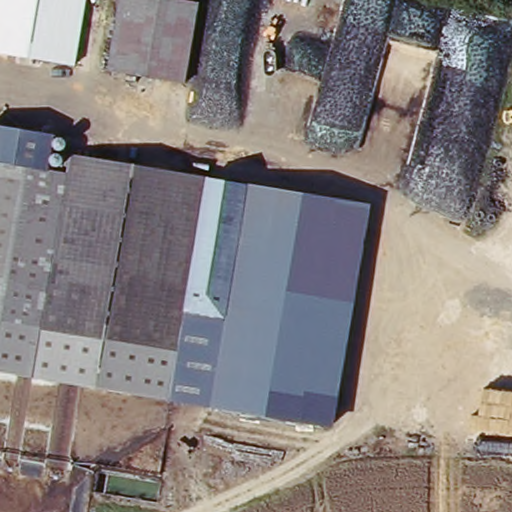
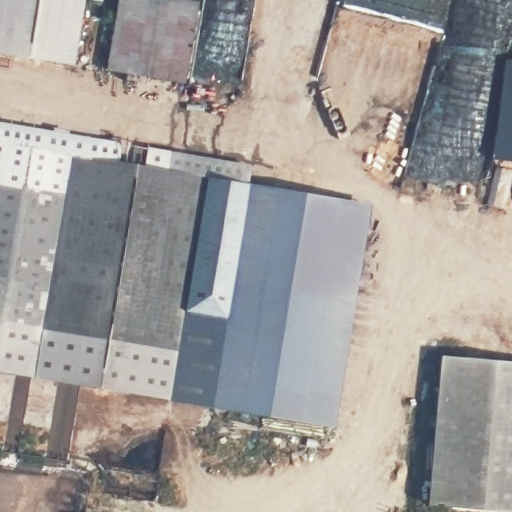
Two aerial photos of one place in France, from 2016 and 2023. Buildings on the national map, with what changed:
unchanged [(74,65),(0,53),(0,0),(86,0),(74,65)]
unchanged [(197,8),(186,86),(111,75),(123,0),(148,0),(197,8)]
new [(512,156),(493,154),(508,54),(512,55),(512,156)]
unchanged [(58,129),(54,152),(373,200),(335,425),(217,407),(172,402),(0,373),(0,119),(58,129)]
new [(512,508),(428,499),(443,352),(512,358),(512,508)]

